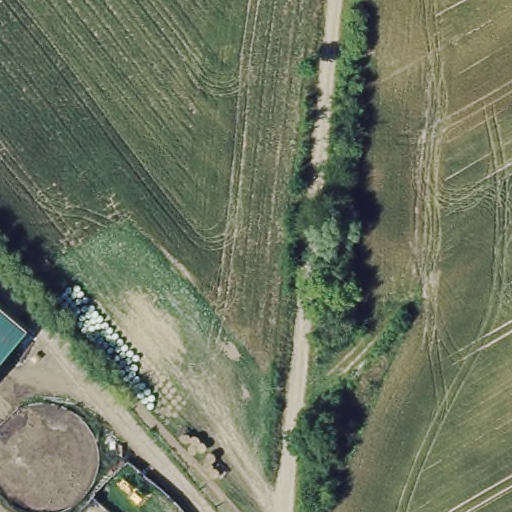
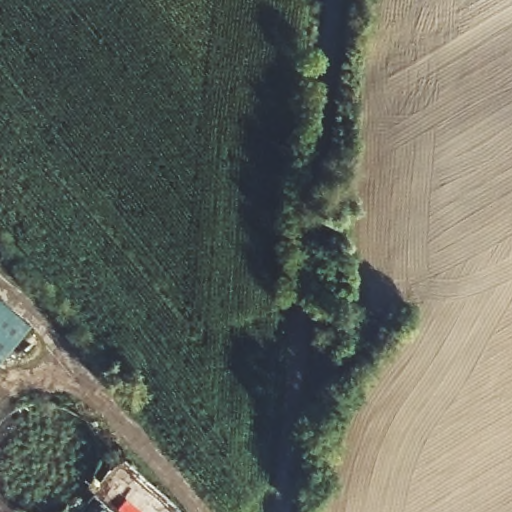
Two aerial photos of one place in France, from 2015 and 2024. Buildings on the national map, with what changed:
unchanged [(0,364),(0,307),(28,333),(0,364)]

